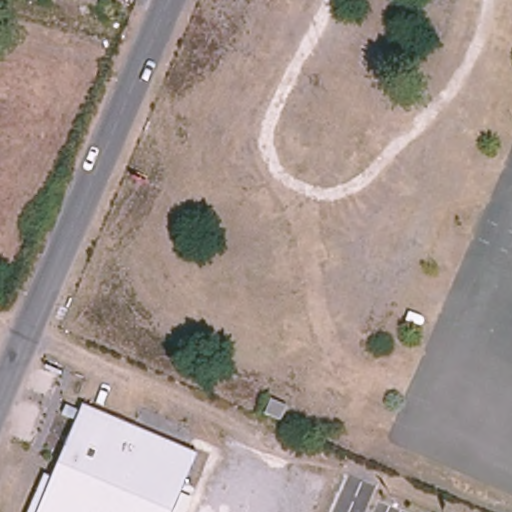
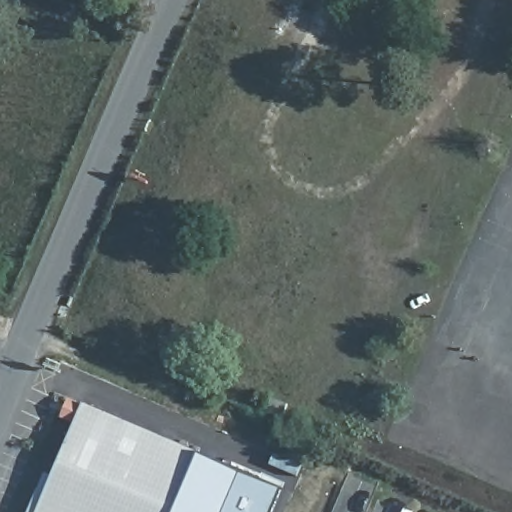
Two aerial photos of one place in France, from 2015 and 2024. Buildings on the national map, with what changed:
unchanged [(281,419),(265,412),(272,398),(288,404),(281,419)]
unchanged [(169,512),(32,512),(79,403),(130,426),(147,433),(178,446),(194,453),(169,512)]
new [(283,490),(274,512),(169,512),(194,453),(283,490)]

